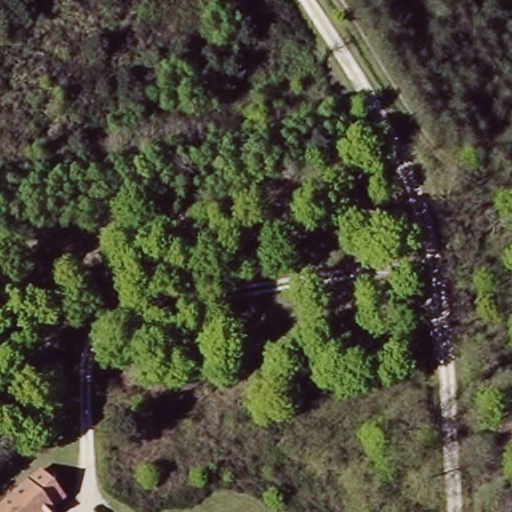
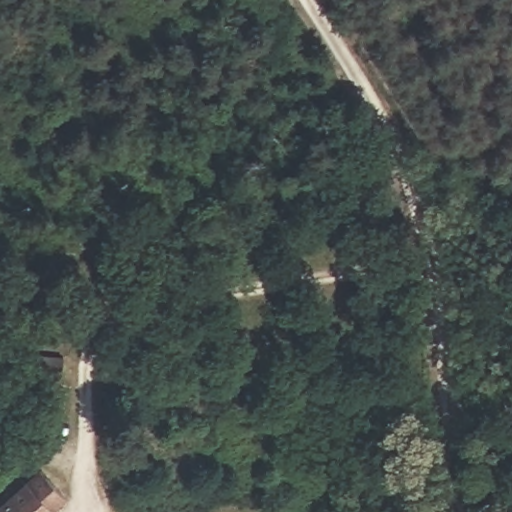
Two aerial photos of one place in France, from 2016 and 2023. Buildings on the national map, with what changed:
unchanged [(80,505),(72,512),(16,512),(56,477),(80,505)]

